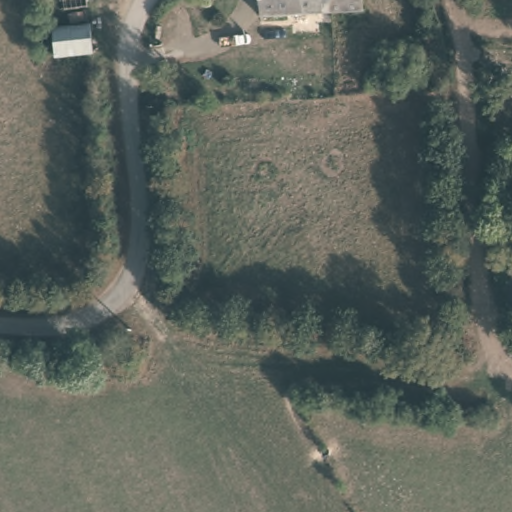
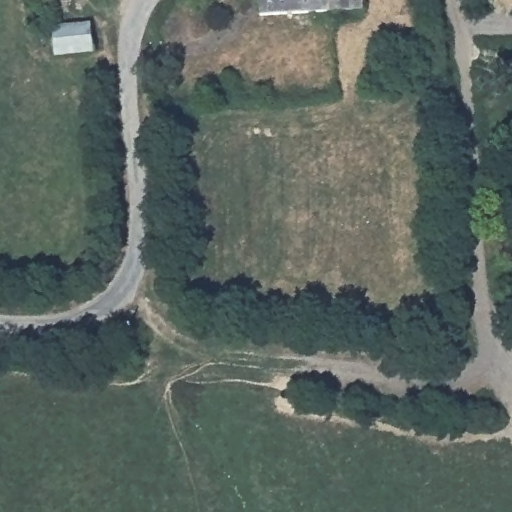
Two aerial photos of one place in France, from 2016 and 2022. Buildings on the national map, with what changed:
unchanged [(261,13),(261,0),(363,0),(363,9),(261,13)]
unchanged [(95,21),(97,48),(58,52),(55,25),(95,21)]

